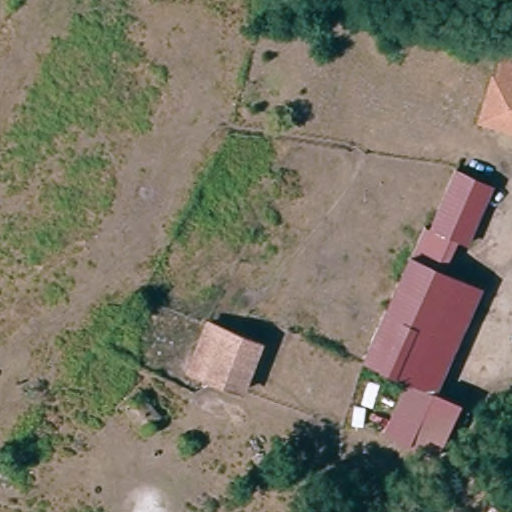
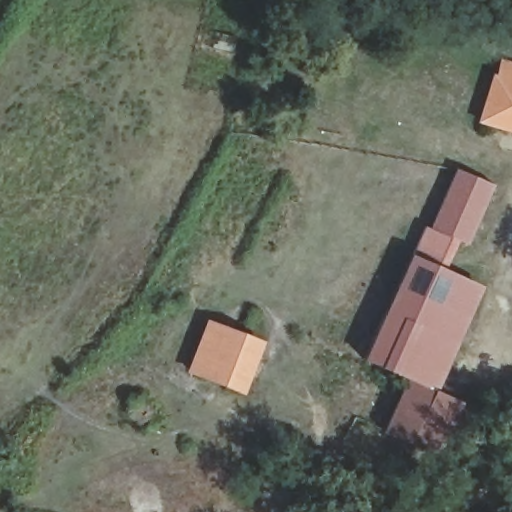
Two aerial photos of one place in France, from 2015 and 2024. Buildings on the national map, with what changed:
unchanged [(495,76),(511,80),(512,78),(512,124),(484,116),(495,76)]
unchanged [(401,377),(360,362),(455,167),(495,185),(468,243),(455,239),(443,272),(485,287),(436,390),(401,377)]
unchanged [(238,389),(188,369),(206,323),(257,342),(238,389)]
unchanged [(459,400),(436,452),(381,429),(401,377),(436,390),(459,400)]

